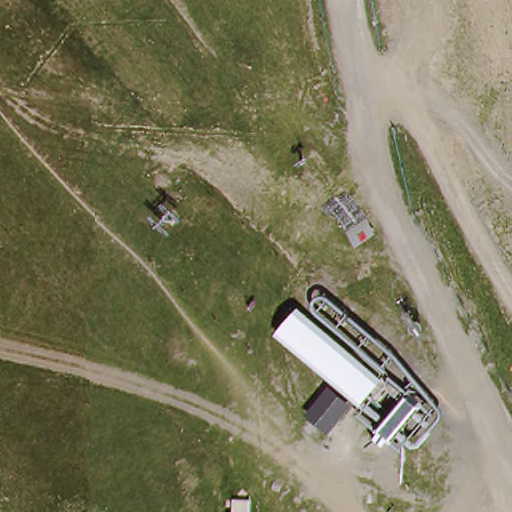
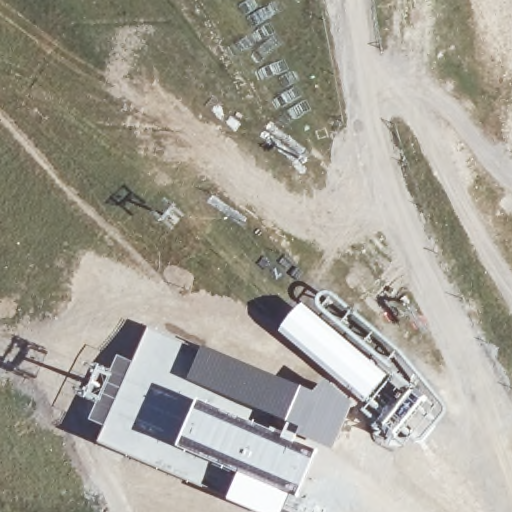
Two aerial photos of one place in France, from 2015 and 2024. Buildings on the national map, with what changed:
unchanged [(427,397),(397,435),(279,331),(305,307),(427,397)]
new [(105,428),(133,361),(148,327),(187,343),(173,372),(184,377),(205,389),(288,425),(282,438),(295,446),(316,458),(302,491),(242,467),(240,473),(210,462),(200,487),(145,465),(98,444),(105,428)]
new [(199,344),(305,387),(288,425),(205,389),(184,377),(199,344)]
new [(118,355),(133,361),(105,428),(90,421),(118,355)]
new [(288,425),(305,387),(315,392),(327,380),(355,402),(332,452),(298,437),(295,446),(282,438),(288,425)]
new [(290,495),(283,512),(256,512),(227,500),(240,473),(290,495)]

